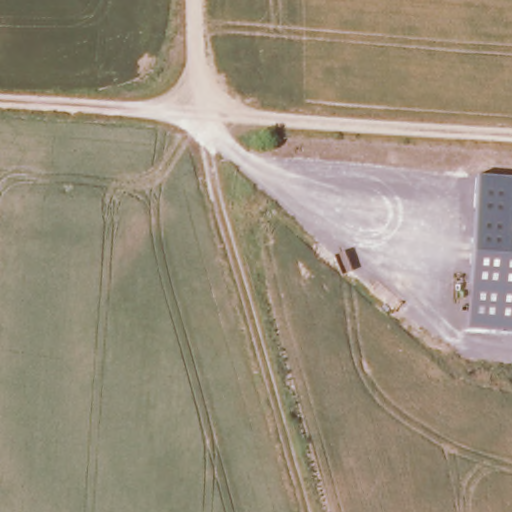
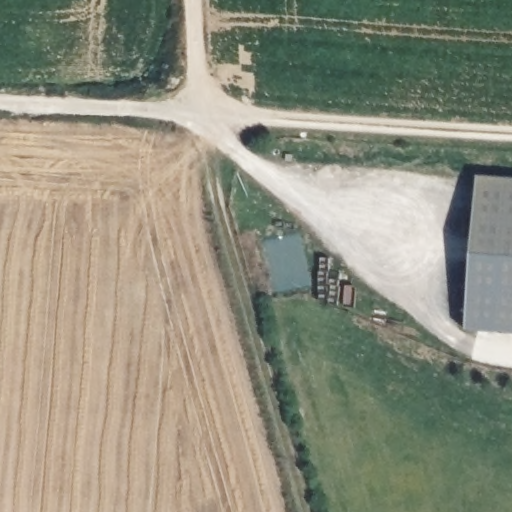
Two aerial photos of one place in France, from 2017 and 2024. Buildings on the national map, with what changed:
unchanged [(477,174),(512,177),(512,333),(466,330),(477,174)]

